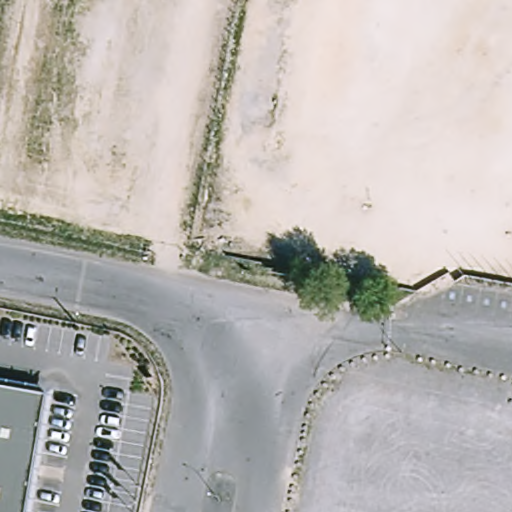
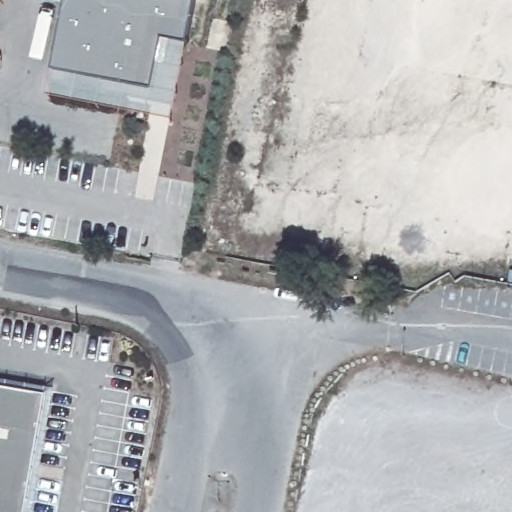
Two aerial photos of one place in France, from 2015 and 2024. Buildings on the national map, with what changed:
new [(162,39),(153,89),(52,70),(65,0),(195,0),(187,44),(162,39)]
unchanged [(29,512),(0,512),(0,388),(50,397),(29,512)]

